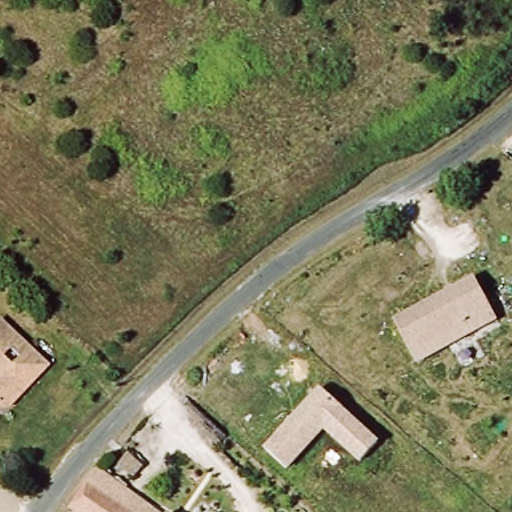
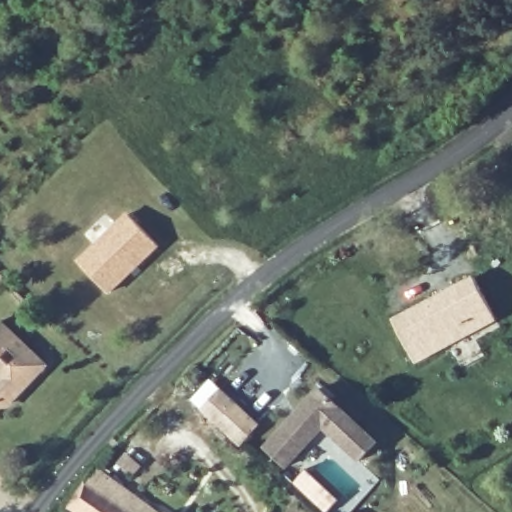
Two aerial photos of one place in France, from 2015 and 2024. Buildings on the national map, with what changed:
new [(127,212),(159,246),(110,294),(77,259),(127,212)]
unchanged [(474,275),(496,315),(415,358),(394,318),(474,275)]
unchanged [(3,324),(48,368),(10,407),(0,407),(0,327),(3,324)]
new [(200,408),(221,387),(261,425),(241,446),(200,408)]
unchanged [(379,441),(360,461),(324,427),(288,467),(265,445),(318,387),(379,441)]
unchanged [(65,511),(90,472),(148,512),(67,512),(65,511)]

